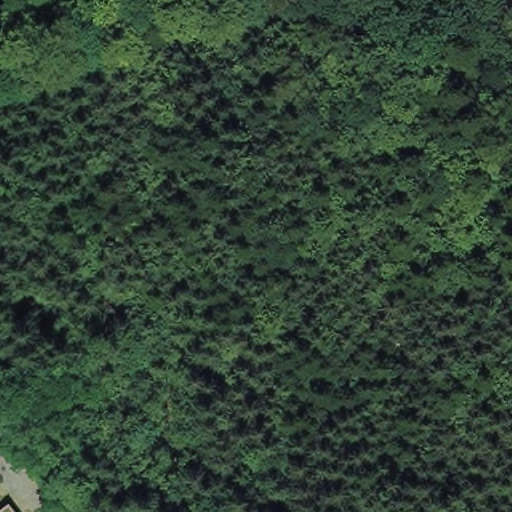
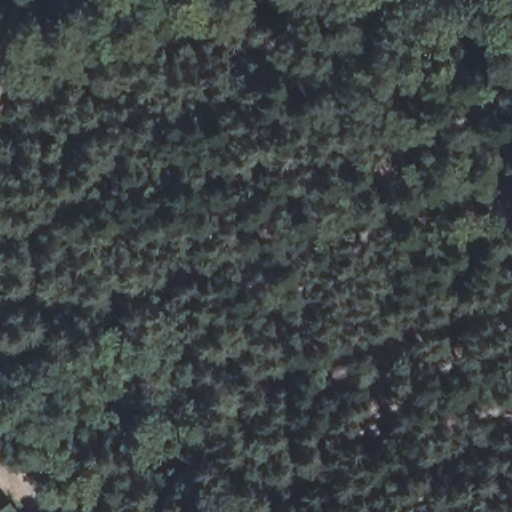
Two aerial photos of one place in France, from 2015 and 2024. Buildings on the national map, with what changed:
[]

